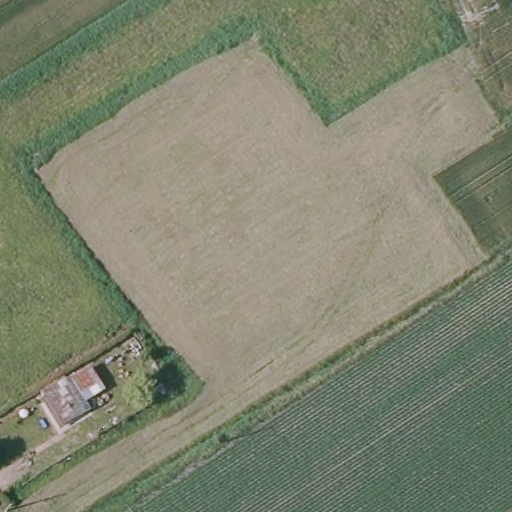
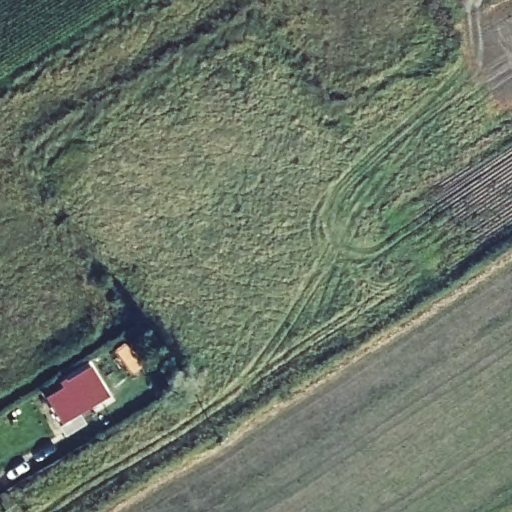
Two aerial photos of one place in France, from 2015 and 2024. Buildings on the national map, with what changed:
demolished [(90,363),(108,390),(83,404),(72,385),(64,389),(83,418),(57,432),(34,396),(59,382),(90,363)]
new [(61,373),(65,378),(90,363),(108,394),(58,423),(37,387),(61,373)]

